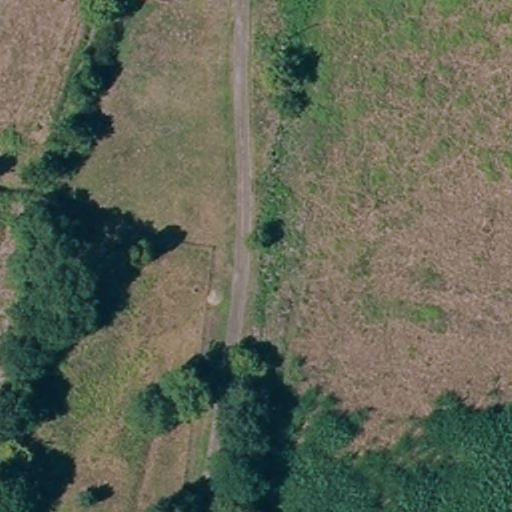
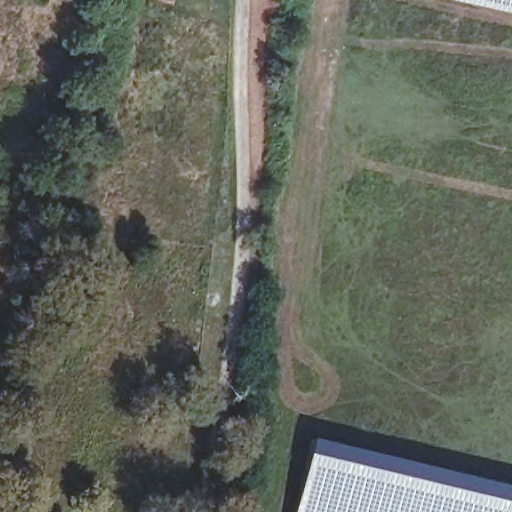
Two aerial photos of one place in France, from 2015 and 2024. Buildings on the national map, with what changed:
unchanged [(172,3),(160,0),(173,0),(172,3)]
new [(512,13),(454,0),(512,0),(512,13)]
new [(512,512),(294,512),(312,437),(512,486),(512,512)]

